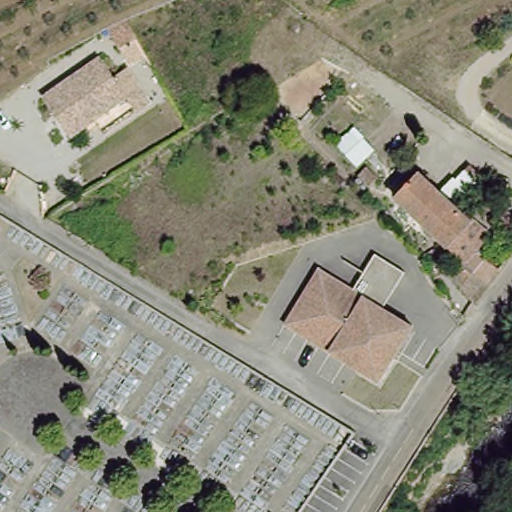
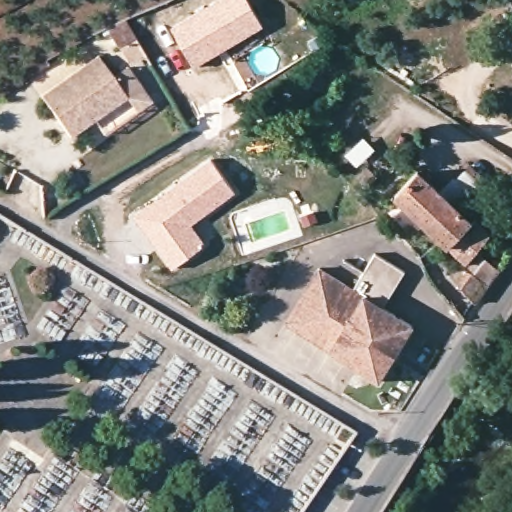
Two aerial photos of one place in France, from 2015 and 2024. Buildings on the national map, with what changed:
new [(217,0),(248,0),(264,26),(193,66),(171,27),(217,0)]
unchanged [(92,61),(124,102),(68,141),(38,100),(92,61)]
new [(207,245),(174,269),(134,216),(211,159),(236,192),(193,225),(207,245)]
unchanged [(443,194),(455,181),(458,184),(474,167),(486,179),(471,196),(469,206),(470,215),(474,222),(482,231),(492,237),(473,259),(486,257),(502,272),(478,305),(453,277),(463,266),(465,267),(468,264),(399,198),(421,174),(443,194)]
unchanged [(365,168),(377,179),(367,191),(355,180),(365,168)]
unchanged [(281,325),(316,270),(350,291),(372,255),(401,273),(379,310),(409,327),(375,383),(281,325)]

